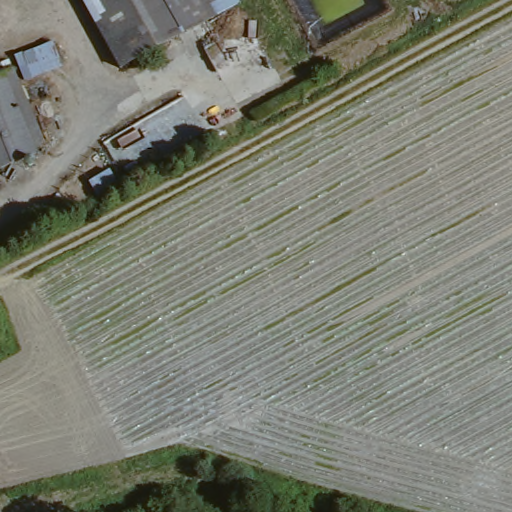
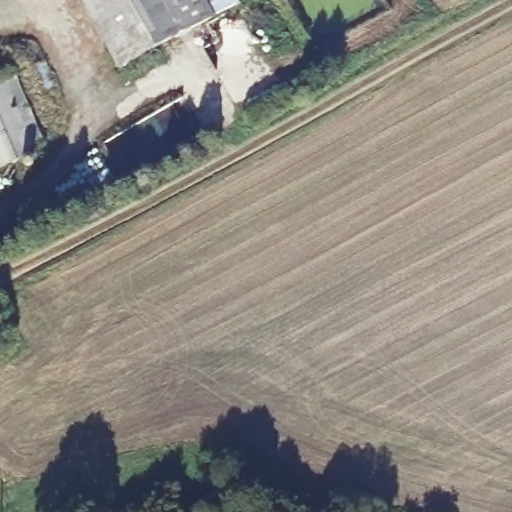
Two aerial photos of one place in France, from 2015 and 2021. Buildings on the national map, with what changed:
unchanged [(90,0),(168,0),(177,16),(157,26),(167,44),(125,67),(90,0)]
unchanged [(157,26),(177,16),(168,0),(212,0),(220,15),(167,44),(157,26)]
unchanged [(220,15),(212,0),(244,0),(245,2),(220,15)]
unchanged [(12,71),(43,147),(32,151),(35,157),(0,171),(0,76),(12,71)]
unchanged [(8,336),(0,338),(0,307),(8,336)]

